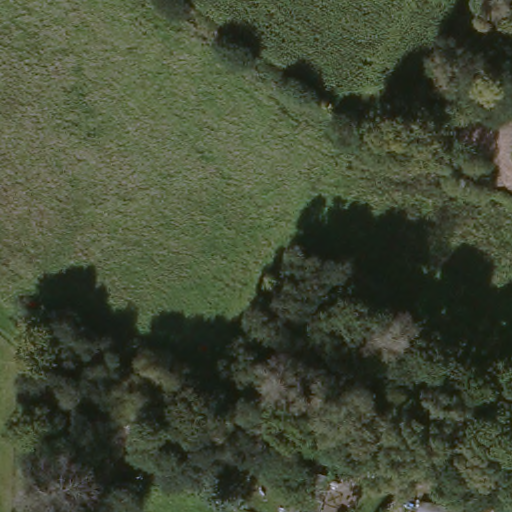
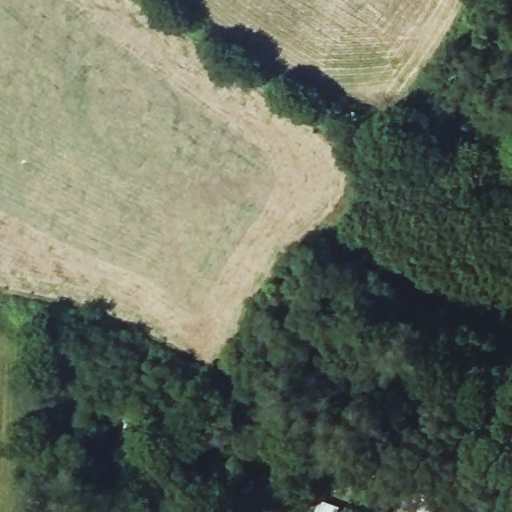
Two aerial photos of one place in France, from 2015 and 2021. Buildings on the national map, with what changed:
[]

